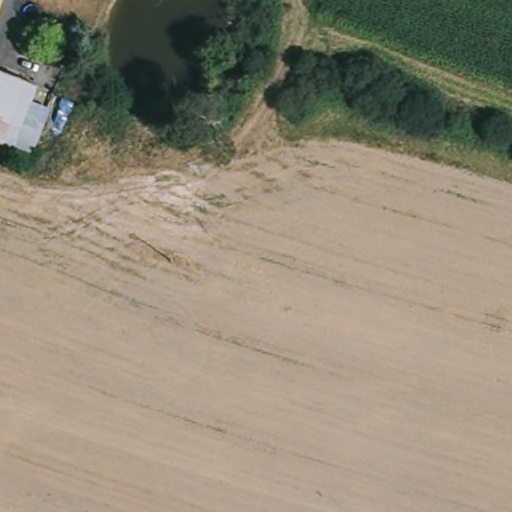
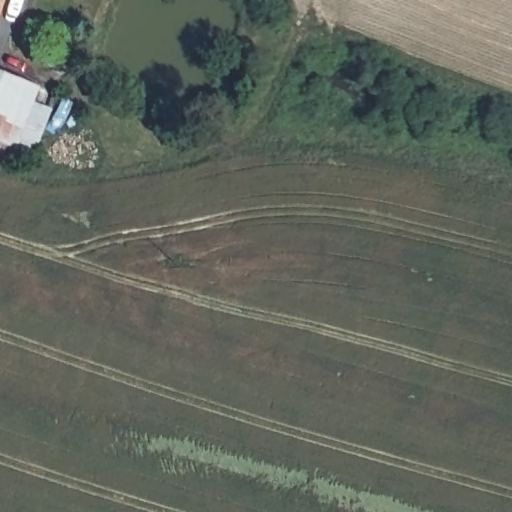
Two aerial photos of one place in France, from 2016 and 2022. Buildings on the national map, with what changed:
unchanged [(7,0),(0,20),(0,0),(7,0)]
unchanged [(39,87),(14,151),(0,146),(0,73),(39,87)]

